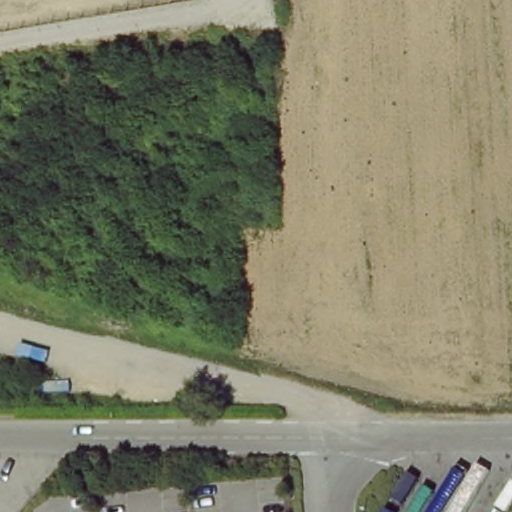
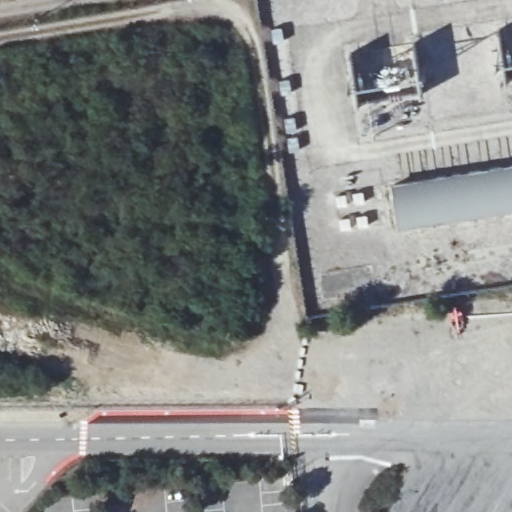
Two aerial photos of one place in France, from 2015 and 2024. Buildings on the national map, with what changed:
new [(399,228),(393,185),(512,168),(512,211),(399,228)]

